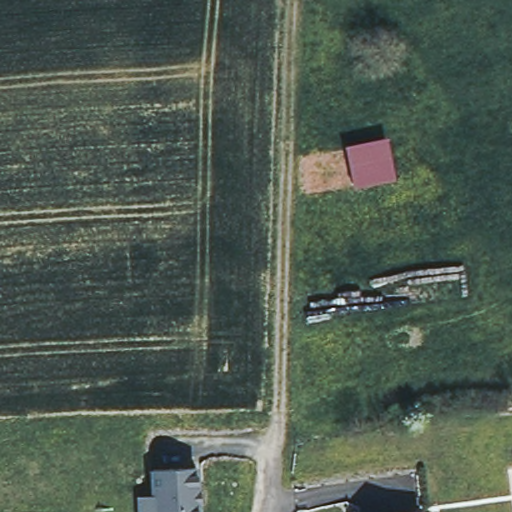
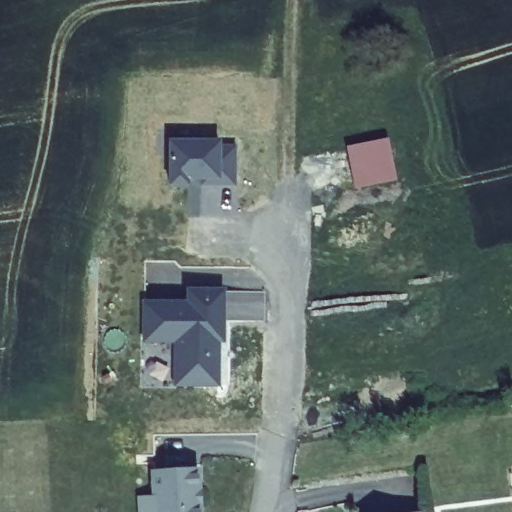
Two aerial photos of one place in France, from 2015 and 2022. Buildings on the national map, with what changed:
new [(223,139),(222,145),(237,145),(237,188),(168,186),(170,138),(223,139)]
unchanged [(356,182),(350,152),(384,145),(390,174),(356,182)]
new [(230,335),(226,334),(226,345),(223,345),(224,380),(220,381),(220,388),(172,387),(172,343),(140,343),(140,297),(182,296),(182,288),(228,287),(230,335)]
unchanged [(201,512),(137,512),(135,499),(150,497),(148,470),(198,467),(201,512)]
unchanged [(424,507),(425,512),(394,512),(398,511),(424,507)]

